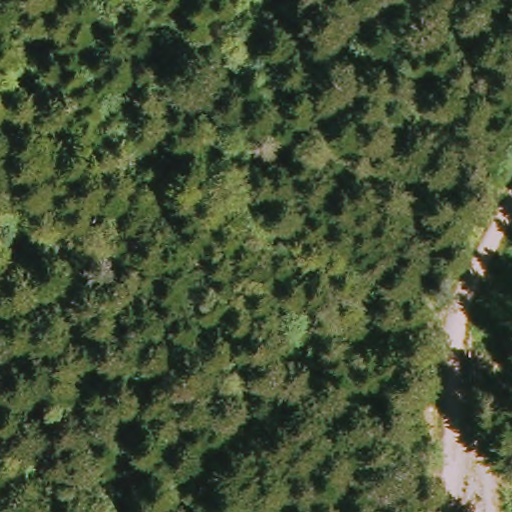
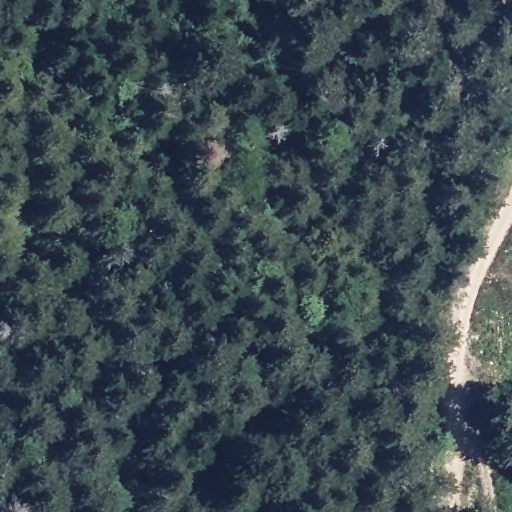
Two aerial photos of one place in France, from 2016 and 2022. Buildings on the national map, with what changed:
unchanged [(512,352),(498,358),(477,298),(512,283),(512,352)]

